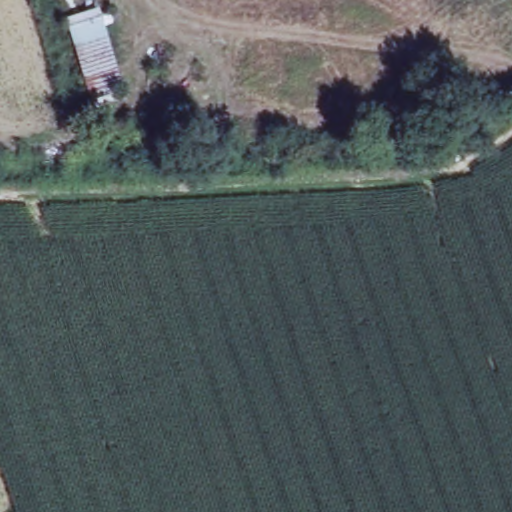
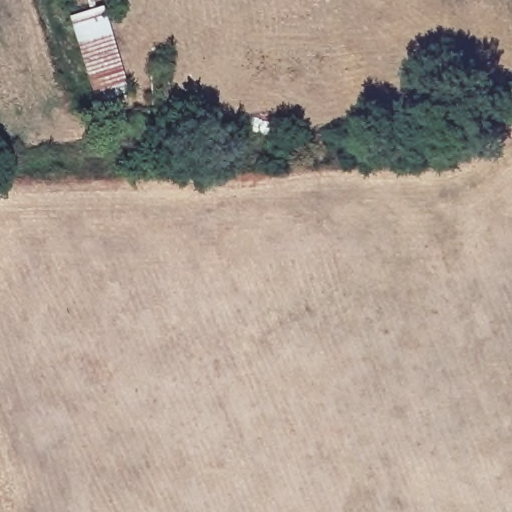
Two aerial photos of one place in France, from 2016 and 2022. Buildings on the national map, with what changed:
unchanged [(71,18),(106,7),(132,92),(94,100),(71,18)]

